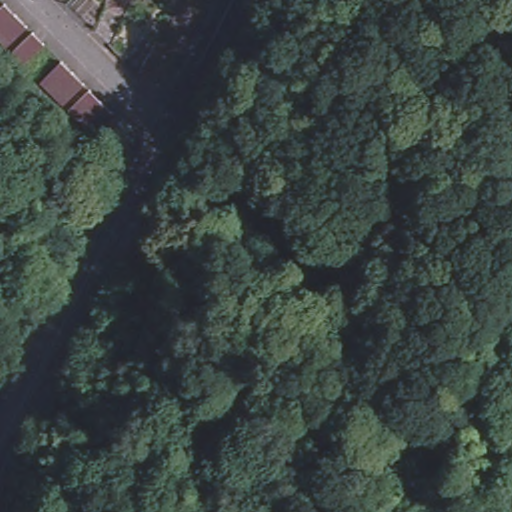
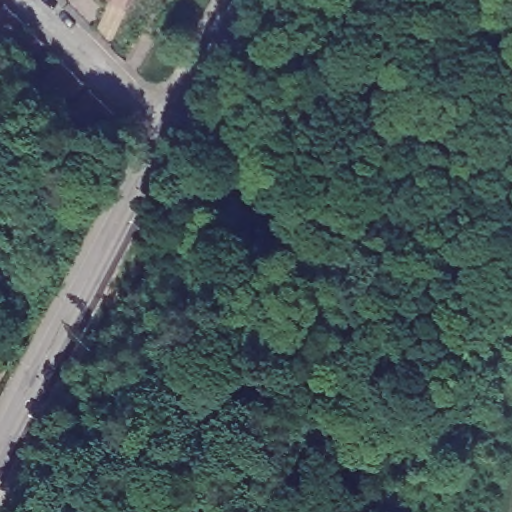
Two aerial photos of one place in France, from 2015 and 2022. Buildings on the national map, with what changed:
unchanged [(2,1),(25,24),(3,45),(0,41),(0,2),(2,1)]
unchanged [(21,62),(9,50),(30,30),(42,42),(21,62)]
unchanged [(58,58),(82,82),(60,102),(37,79),(58,58)]
unchanged [(87,87),(110,110),(88,131),(65,107),(87,87)]

